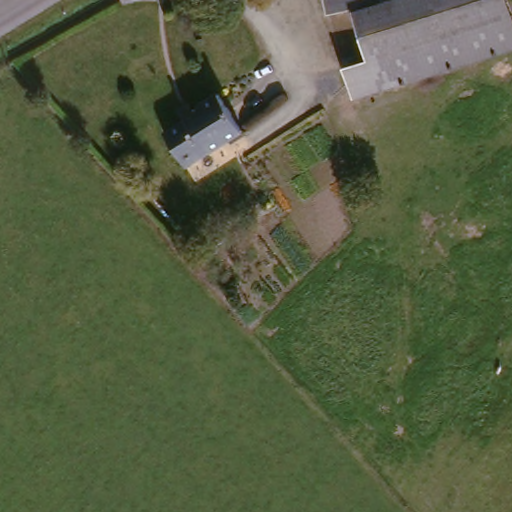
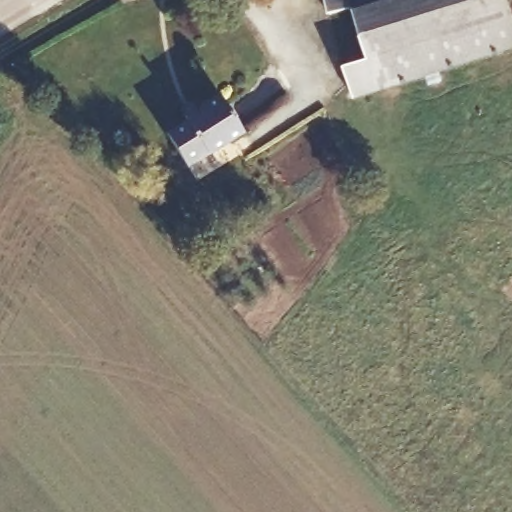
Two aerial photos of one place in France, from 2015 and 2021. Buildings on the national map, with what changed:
unchanged [(352,4),(329,11),(326,0),(365,0),(352,4)]
unchanged [(365,0),(509,0),(512,11),(512,16),(368,60),(352,4),(365,0)]
unchanged [(354,96),(345,66),(368,60),(512,16),(512,47),(380,89),(354,96)]
unchanged [(171,132),(191,119),(186,109),(196,103),(199,109),(206,105),(224,92),(249,130),(193,165),(171,132)]

